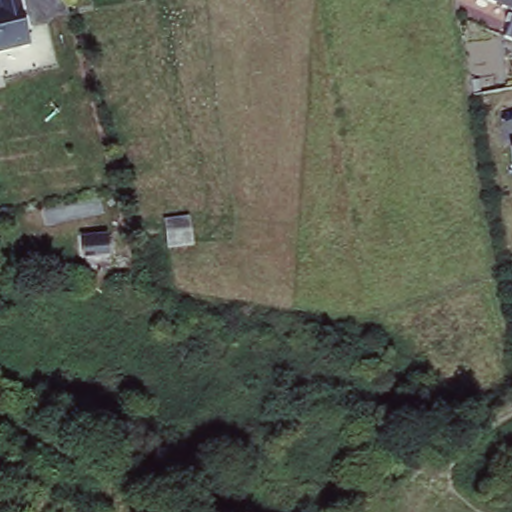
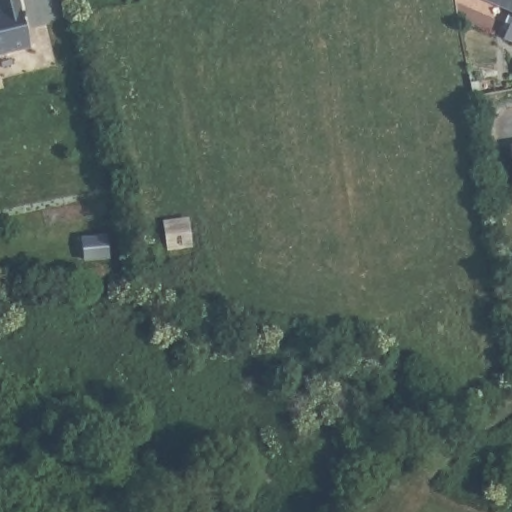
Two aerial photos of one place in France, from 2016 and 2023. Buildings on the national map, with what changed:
unchanged [(0,51),(0,0),(17,0),(25,47),(0,51)]
unchanged [(497,0),(512,0),(512,6),(497,0)]
unchanged [(498,38),(512,7),(512,43),(498,38)]
unchanged [(512,145),(512,149),(511,145),(512,145)]
unchanged [(164,222),(191,218),(197,251),(169,255),(164,222)]

